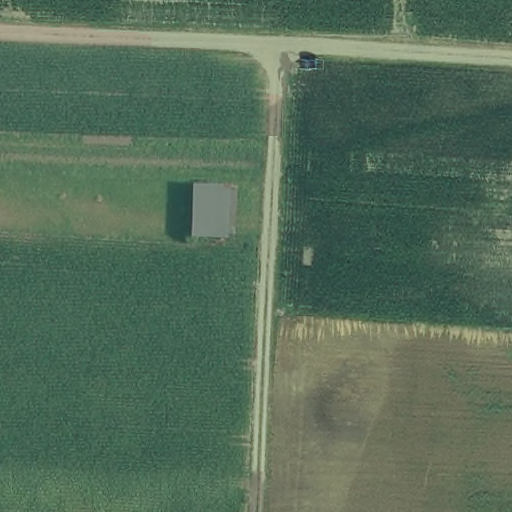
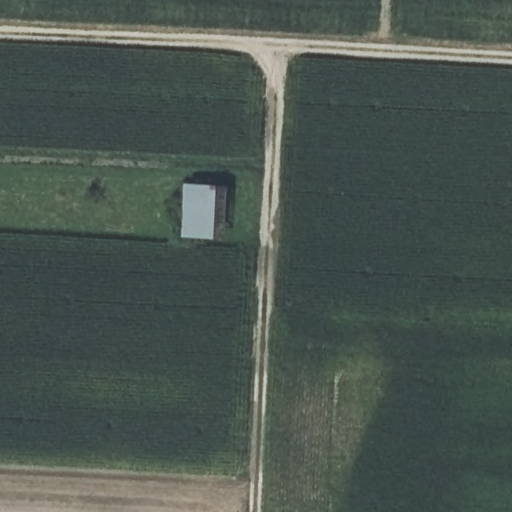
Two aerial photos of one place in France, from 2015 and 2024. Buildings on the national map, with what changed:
unchanged [(188,237),(188,231),(191,187),(219,187),(218,232),(217,239),(188,237)]

